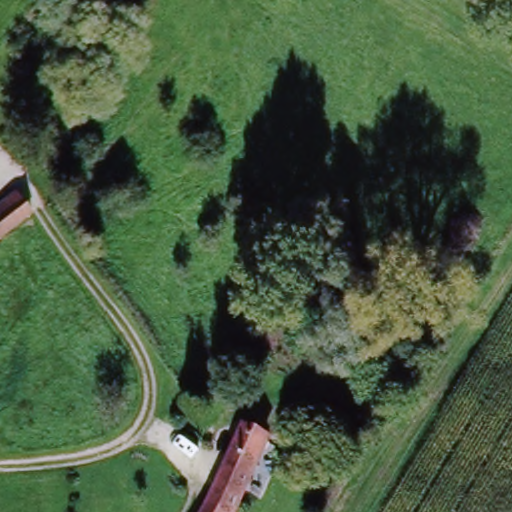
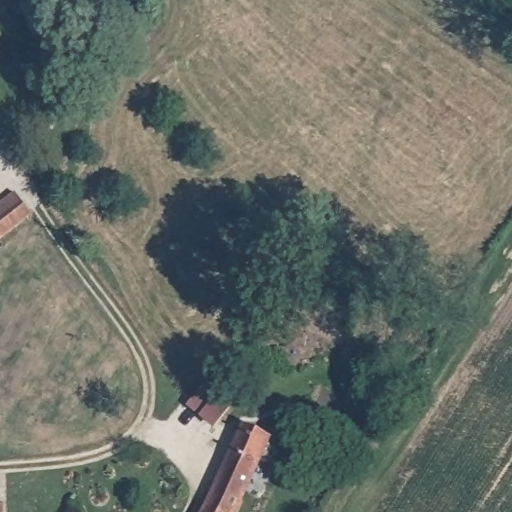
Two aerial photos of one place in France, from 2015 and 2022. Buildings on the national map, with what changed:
unchanged [(27,211),(0,235),(0,209),(15,197),(27,211)]
unchanged [(290,350),(282,360),(250,336),(260,323),(290,350)]
unchanged [(252,427),(275,438),(239,512),(229,512),(215,506),(252,427)]
unchanged [(229,512),(212,512),(215,506),(229,512)]

